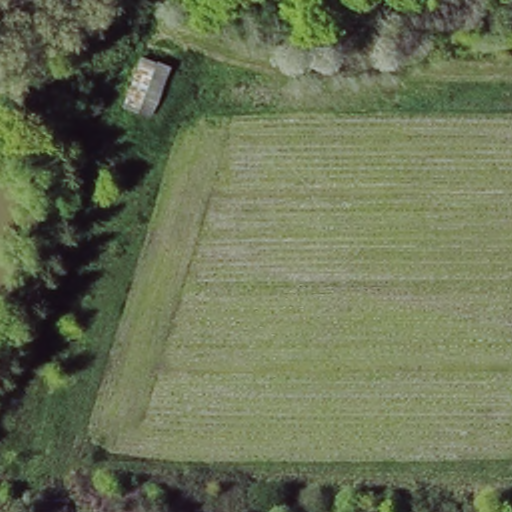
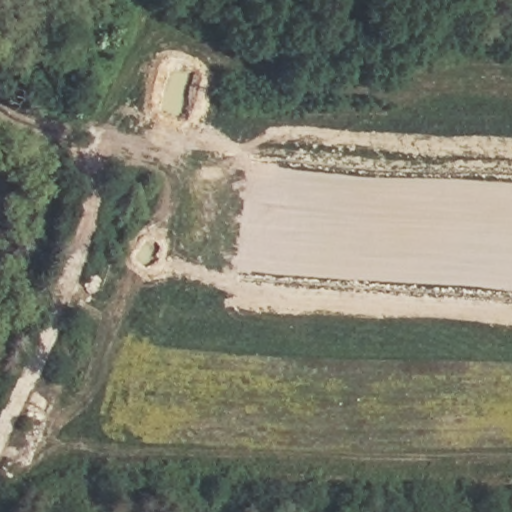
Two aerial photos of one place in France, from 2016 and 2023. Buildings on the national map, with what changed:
unchanged [(176,72),(151,122),(116,107),(142,55),(176,72)]

